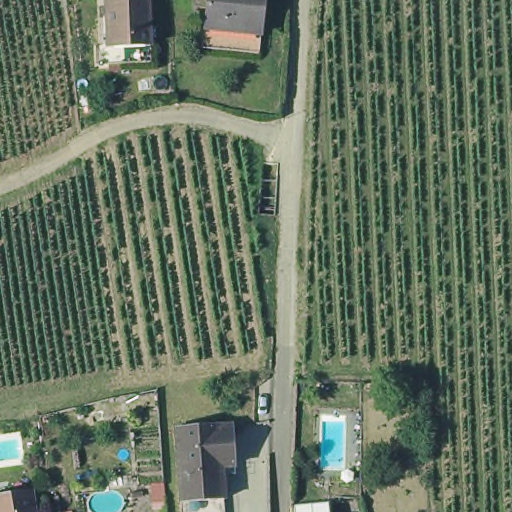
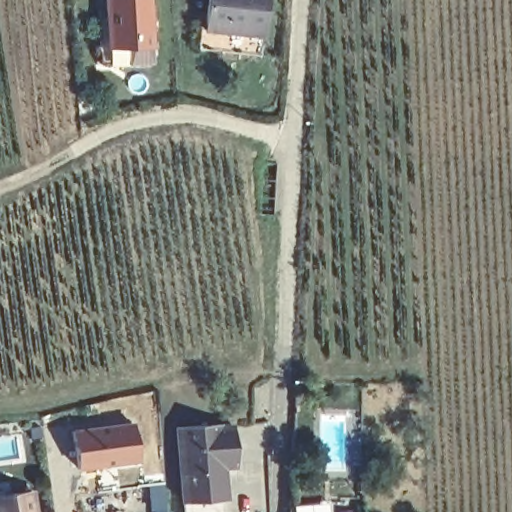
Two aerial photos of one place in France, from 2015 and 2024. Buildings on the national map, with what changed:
unchanged [(152,47),(110,49),(108,17),(107,0),(149,0),(152,47)]
unchanged [(212,0),(268,0),(265,35),(209,30),(212,0)]
unchanged [(262,54),(203,49),(205,30),(209,30),(265,35),(262,54)]
new [(132,419),(137,461),(78,470),(72,426),(132,419)]
unchanged [(235,459),(220,460),(223,493),(182,496),(177,422),(217,419),(218,422),(232,421),(235,459)]
unchanged [(0,512),(0,496),(15,494),(35,490),(38,512),(0,512)]
unchanged [(295,512),(295,503),(335,501),(335,512),(295,512)]

